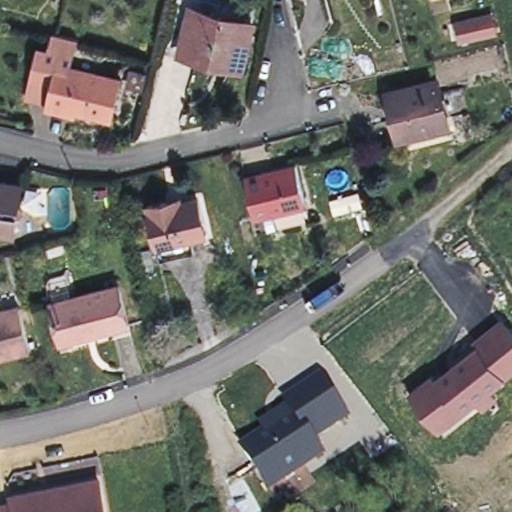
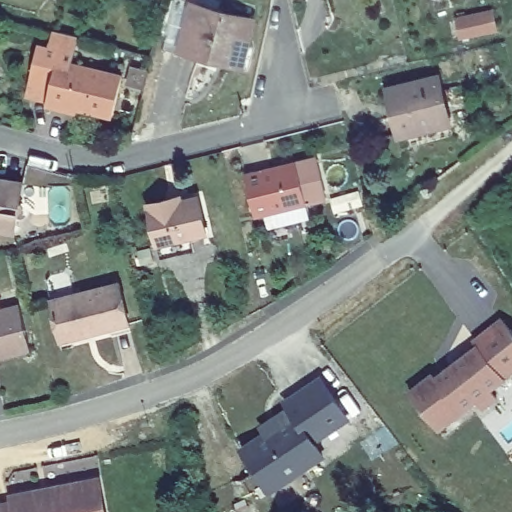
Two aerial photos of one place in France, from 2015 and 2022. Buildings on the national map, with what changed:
unchanged [(252,22),(242,64),(178,49),(189,6),(252,22)]
unchanged [(492,13),(495,29),(487,31),(460,36),(457,20),(483,14),(492,13)]
unchanged [(26,90),(36,49),(46,51),(52,26),(53,27),(77,33),(71,59),(56,55),(47,95),(26,90)]
unchanged [(71,59),(121,71),(112,110),(47,95),(56,55),(71,59)]
unchanged [(438,79),(449,123),(398,136),(387,91),(438,79)]
unchanged [(296,159),(309,214),(275,222),(270,206),(255,210),(245,171),(296,159)]
unchanged [(22,184),(18,203),(22,209),(17,213),(14,232),(0,230),(0,181),(0,180),(22,184)]
unchanged [(160,254),(156,240),(147,199),(166,194),(167,200),(197,193),(205,229),(190,233),(193,247),(160,254)]
unchanged [(118,285),(128,324),(93,333),(92,329),(60,337),(50,300),(118,285)]
unchanged [(29,349),(0,356),(0,313),(19,308),(29,349)]
unchanged [(410,388),(432,370),(436,374),(477,342),(474,338),(501,316),(512,329),(512,378),(445,432),(410,388)]
unchanged [(262,432),(258,426),(285,407),(281,401),(321,374),(352,421),(321,444),(329,458),(271,496),(240,448),(262,432)]
unchanged [(10,498),(97,481),(103,512),(0,512),(0,507),(11,504),(10,498)]

